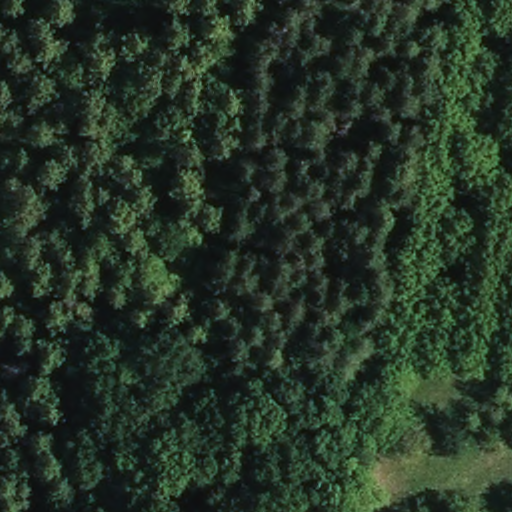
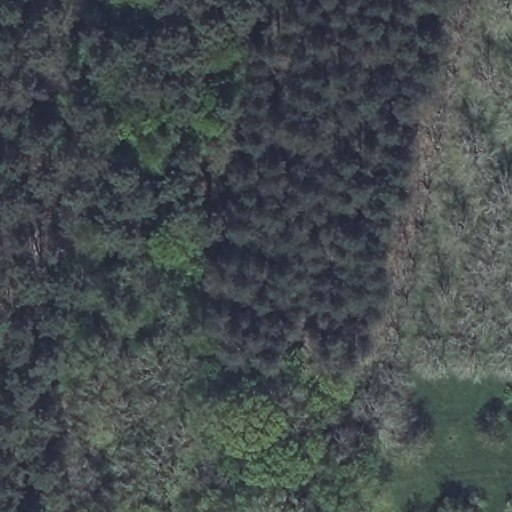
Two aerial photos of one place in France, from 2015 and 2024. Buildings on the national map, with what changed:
[]

